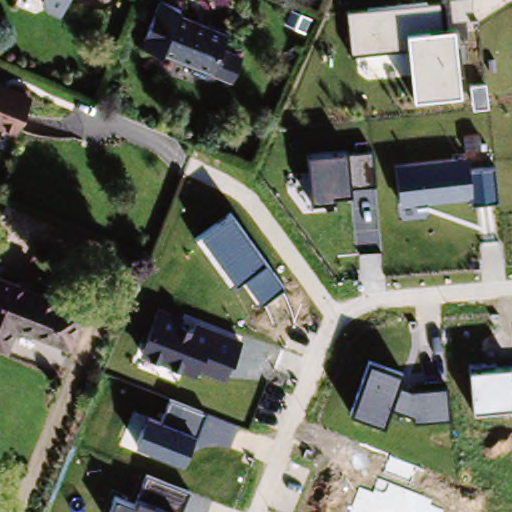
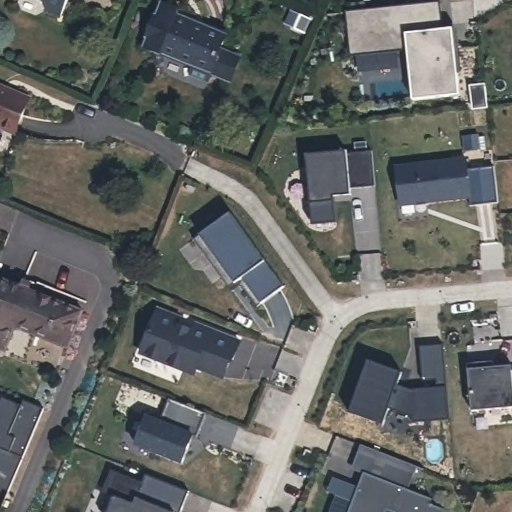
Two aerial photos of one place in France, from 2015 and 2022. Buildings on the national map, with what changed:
unchanged [(47,9),(45,0),(68,0),(62,14),(47,9)]
unchanged [(137,47),(154,0),(160,0),(228,29),(207,79),(137,47)]
unchanged [(442,29),(455,29),(460,94),(412,99),(408,45),(351,55),(347,14),(439,2),(442,29)]
unchanged [(24,92),(9,126),(0,122),(0,81),(24,92)]
unchanged [(489,107),(473,109),(470,86),(486,83),(489,107)]
unchanged [(377,185),(351,182),(352,194),(334,195),(334,201),(312,204),(310,156),(348,152),(372,150),(377,185)]
unchanged [(498,201),(472,204),(472,198),(401,205),(397,165),(469,158),(470,169),(494,167),(498,201)]
unchanged [(284,286),(261,302),(243,276),(235,281),(230,285),(196,240),(202,234),(233,214),(284,286)]
unchanged [(77,309),(64,344),(11,323),(1,347),(0,347),(0,280),(77,309)]
unchanged [(227,380),(200,369),(197,376),(141,355),(158,308),(241,339),(227,380)]
unchanged [(401,373),(398,384),(414,391),(445,389),(448,419),(413,422),(413,416),(389,406),(382,425),(351,413),(370,360),(401,373)]
unchanged [(511,371),(512,371),(512,407),(473,410),(469,369),(511,366),(511,371)]
new [(4,397),(22,405),(24,399),(47,408),(24,461),(0,450),(0,405),(4,397)]
unchanged [(196,433),(185,465),(136,444),(147,416),(160,422),(170,400),(204,413),(196,433)]
new [(413,491),(435,499),(433,505),(446,510),(445,512),(350,512),(365,474),(353,469),(363,446),(422,468),(413,491)]
unchanged [(182,512),(108,512),(115,495),(136,502),(147,475),(190,491),(182,512)]

